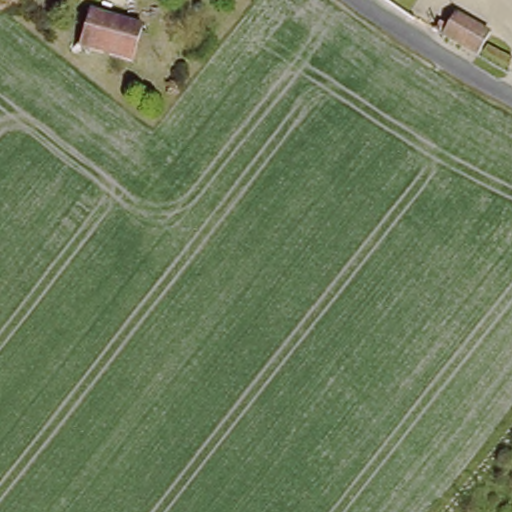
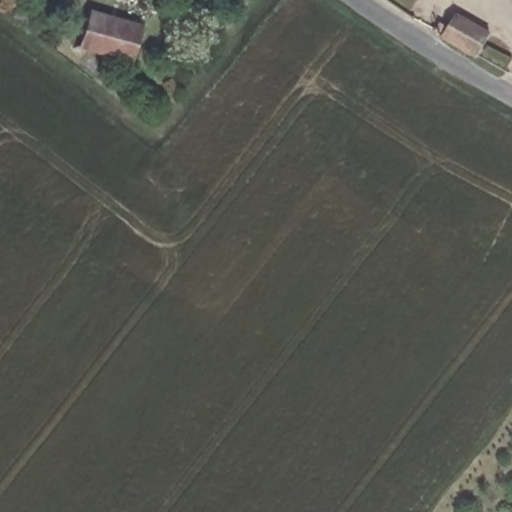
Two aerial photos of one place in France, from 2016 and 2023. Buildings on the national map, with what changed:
unchanged [(92,14),(145,29),(135,62),(84,47),(92,14)]
unchanged [(443,40),(455,21),(489,40),(479,61),(443,40)]

